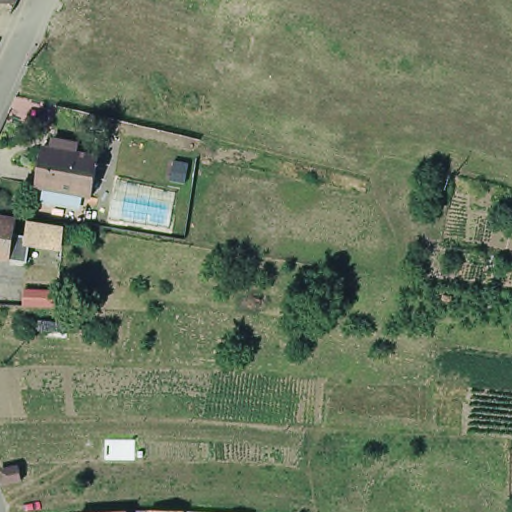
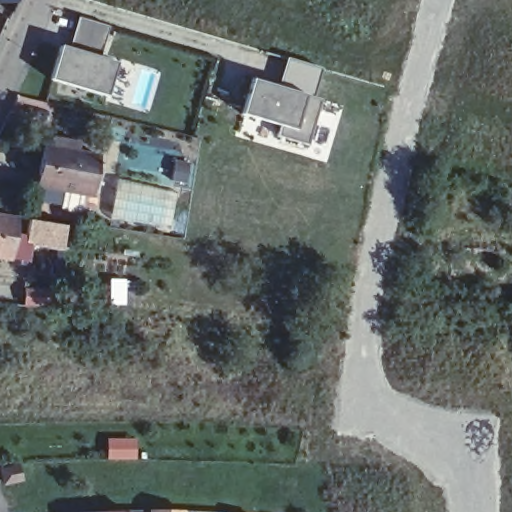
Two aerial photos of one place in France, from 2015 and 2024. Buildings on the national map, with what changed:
new [(110,25),(104,57),(120,62),(110,96),(50,82),(59,43),(71,46),(76,17),(110,25)]
new [(252,80),(320,100),(307,144),(277,135),(280,125),(242,113),(252,80)]
unchanged [(92,196),(90,196),(85,223),(34,215),(38,187),(36,186),(42,146),(50,147),(52,138),(75,142),(74,151),(98,156),(92,196)]
unchanged [(141,182),(141,183),(152,185),(152,186),(165,188),(164,188),(176,190),(170,226),(158,224),(158,225),(146,223),(134,221),(134,222),(122,220),(110,218),(117,178),(129,180),(141,182)]
unchanged [(15,234),(26,236),(28,219),(65,225),(62,244),(30,239),(27,261),(0,257),(0,217),(17,219),(15,234)]
unchanged [(56,300),(55,307),(48,307),(48,300),(56,300)]
new [(140,439),(139,465),(107,462),(107,441),(140,439)]
unchanged [(19,465),(22,480),(5,483),(2,468),(19,465)]
unchanged [(93,507),(125,505),(130,505),(130,512),(85,512),(85,507),(93,507)]
unchanged [(151,509),(182,510),(182,512),(150,512),(151,509)]

